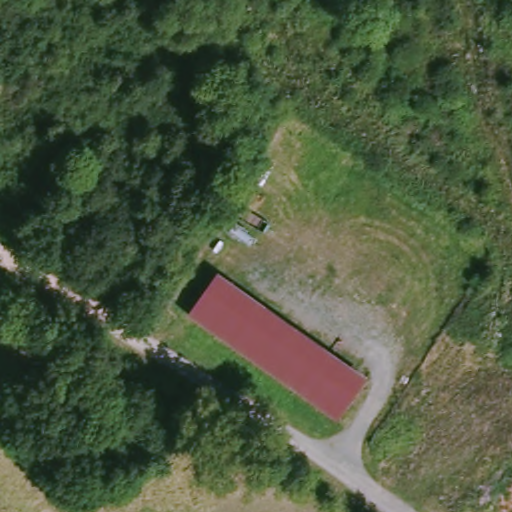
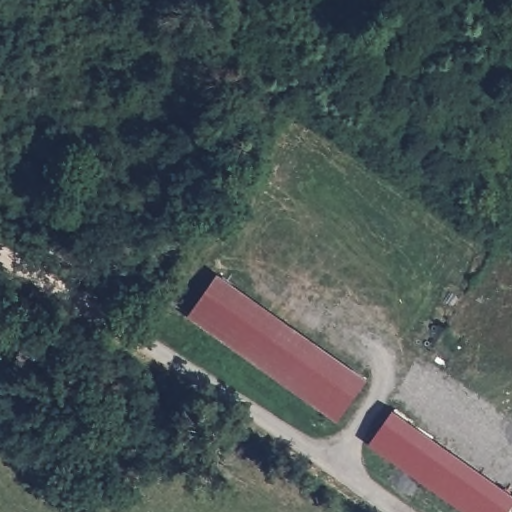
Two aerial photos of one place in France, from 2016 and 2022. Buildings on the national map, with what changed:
unchanged [(367,372),(340,412),(188,313),(215,272),(367,372)]
new [(370,443),(393,410),(512,492),(512,506),(508,512),(468,512),(370,443)]

